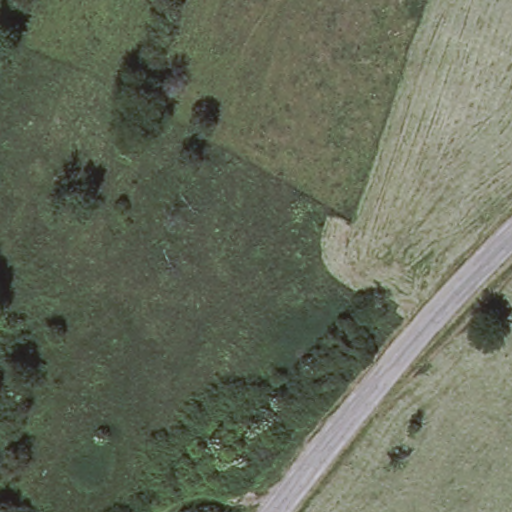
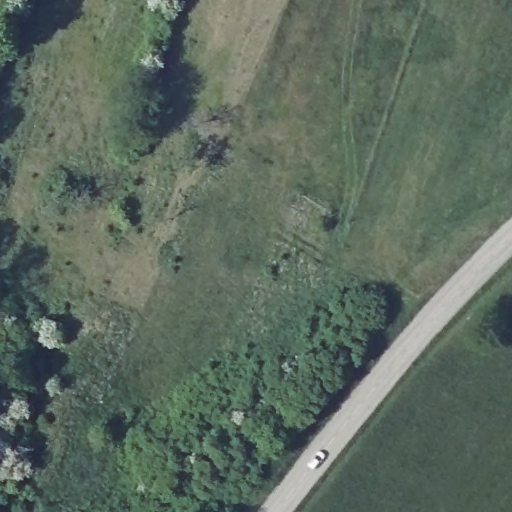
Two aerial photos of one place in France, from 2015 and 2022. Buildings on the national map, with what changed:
unchanged [(281,348),(293,330),(304,340),(291,358),(281,348)]

